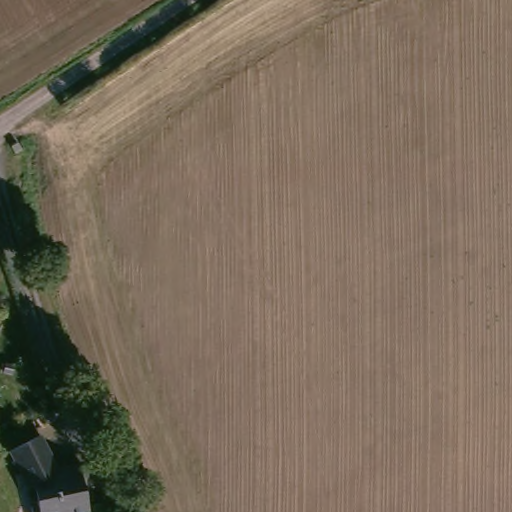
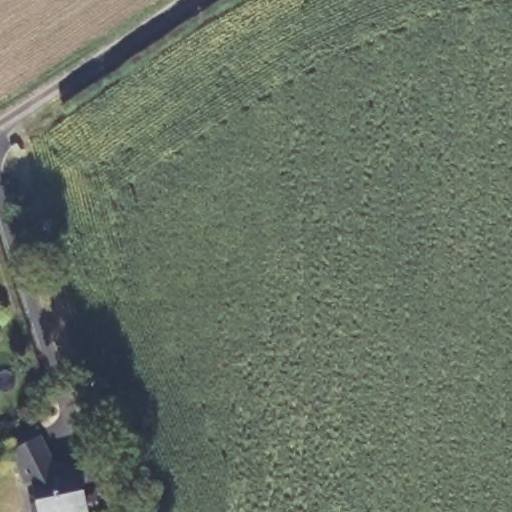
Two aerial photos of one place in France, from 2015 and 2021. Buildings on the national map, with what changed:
unchanged [(38,494),(14,452),(39,440),(56,468),(76,463),(88,512),(38,512),(32,497),(38,494)]

